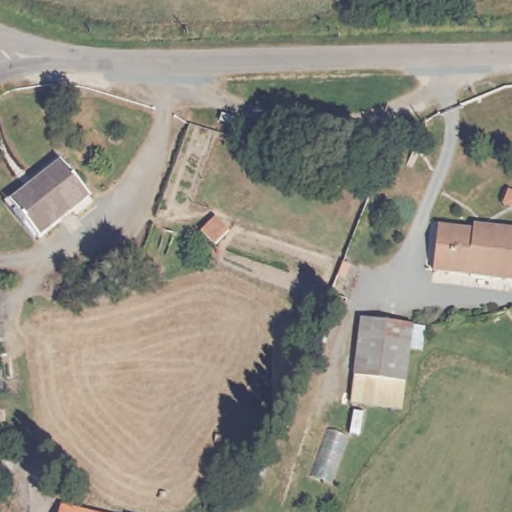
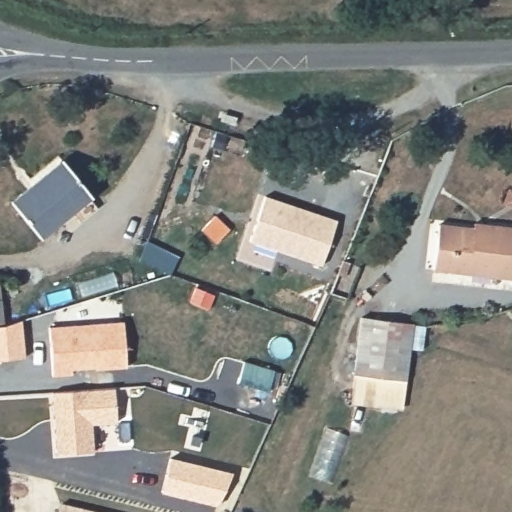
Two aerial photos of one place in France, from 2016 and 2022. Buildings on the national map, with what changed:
unchanged [(37,235),(9,199),(60,157),(89,193),(37,235)]
new [(321,265),(251,240),(266,195),(338,220),(321,265)]
unchanged [(200,225),(212,211),(218,217),(227,227),(213,240),(211,238),(200,225)]
unchanged [(438,222),(470,225),(470,220),(496,224),(512,226),(512,276),(432,265),(438,222)]
new [(23,320),(27,357),(0,360),(0,309),(1,316),(2,327),(2,325),(23,320)]
unchanged [(367,315),(419,324),(410,381),(358,372),(367,315)]
demolished [(0,347),(0,316),(1,316),(2,327),(3,347),(0,347)]
new [(49,326),(124,321),(127,366),(95,369),(95,367),(72,369),(73,374),(53,375),(49,326)]
new [(410,381),(403,412),(352,403),(358,372),(410,381)]
new [(117,422),(93,424),(95,451),(57,453),(52,392),(115,387),(117,422)]
new [(217,506),(162,492),(170,457),(234,472),(217,506)]
unchanged [(99,512),(57,512),(60,502),(99,512)]

